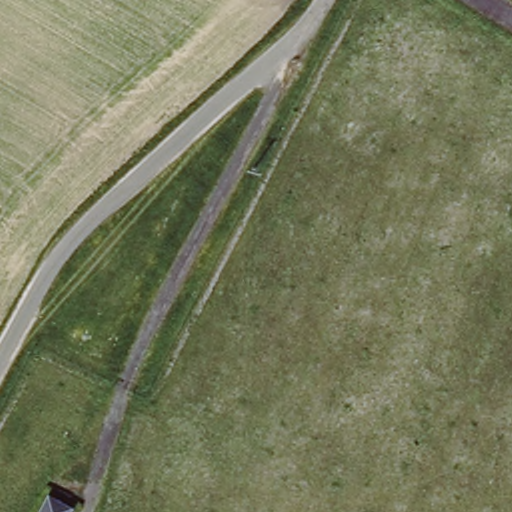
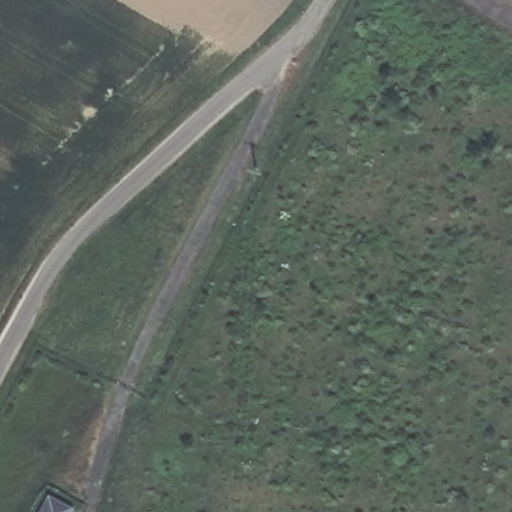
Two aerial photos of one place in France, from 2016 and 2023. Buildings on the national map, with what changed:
unchanged [(76,506),(74,510),(73,512),(40,512),(51,492),(76,506)]

